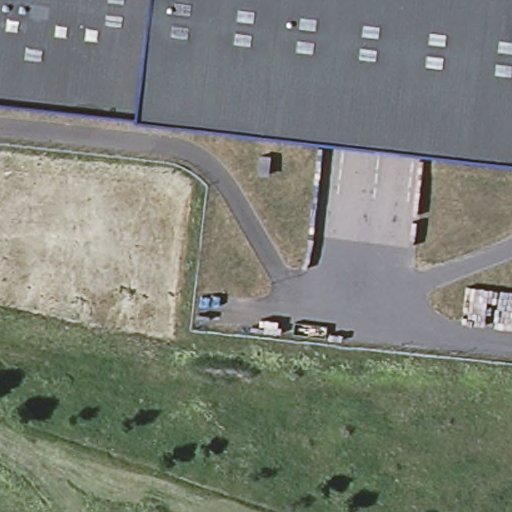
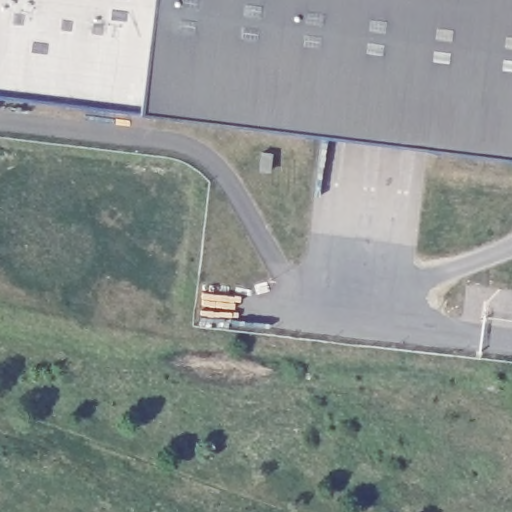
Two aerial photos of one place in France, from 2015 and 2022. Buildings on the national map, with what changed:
unchanged [(512,0),(512,158),(0,95),(0,0),(512,0)]

